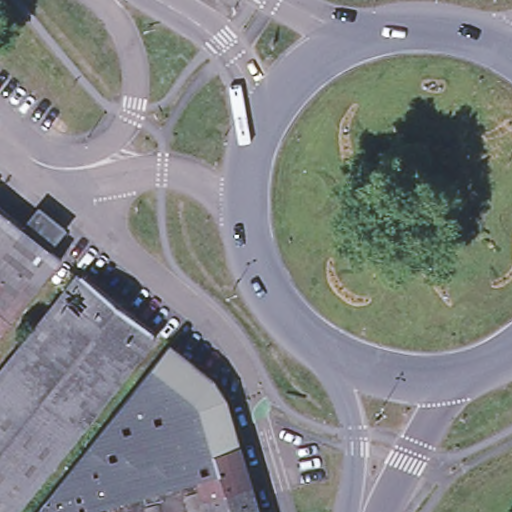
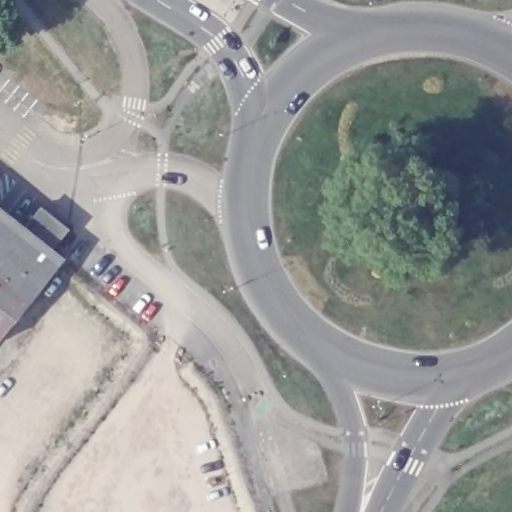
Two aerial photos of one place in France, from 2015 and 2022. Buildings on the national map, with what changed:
unchanged [(63,230),(48,248),(60,258),(38,285),(10,320),(0,332),(0,209),(23,228),(38,209),(63,230)]
demolished [(11,512),(0,512),(0,380),(82,275),(155,332),(11,512)]
demolished [(102,506),(86,449),(170,344),(207,374),(237,464),(102,506)]
demolished [(86,449),(102,506),(105,512),(37,512),(86,449)]
demolished [(237,464),(253,512),(105,512),(102,506),(237,464)]

